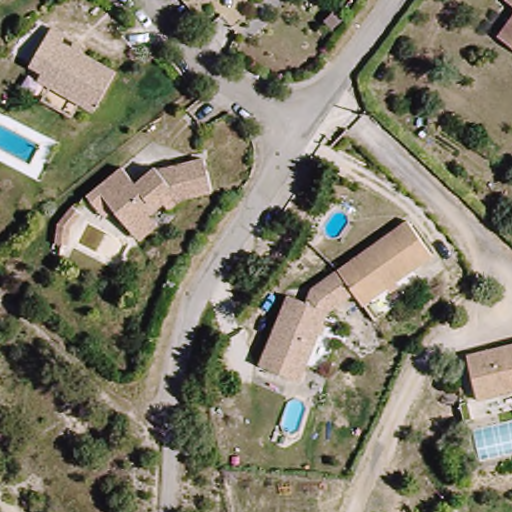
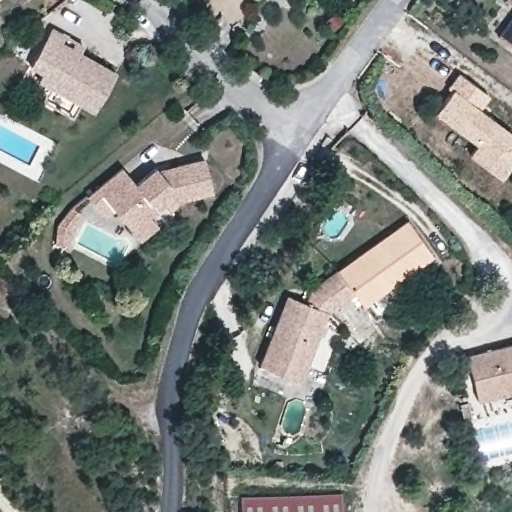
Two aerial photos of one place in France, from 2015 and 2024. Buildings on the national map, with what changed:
unchanged [(504,1),(505,0),(512,0),(512,8),(504,1)]
unchanged [(495,41),(512,13),(512,54),(495,41)]
unchanged [(45,104),(52,89),(39,82),(43,74),(31,66),(51,29),(63,36),(61,44),(115,75),(95,114),(80,105),(73,119),(45,104)]
new [(451,89),(448,86),(458,72),(489,95),(480,109),(512,134),(512,162),(499,179),(467,155),(475,144),(434,114),(451,89)]
unchanged [(147,243),(139,233),(123,214),(120,211),(110,219),(93,199),(103,190),(126,171),(138,186),(158,171),(209,159),(218,192),(189,199),(176,210),(171,205),(157,218),(165,227),(147,243)]
unchanged [(86,217),(75,230),(73,244),(61,243),(63,225),(77,209),(86,217)]
unchanged [(275,331),(288,297),(309,305),(318,285),(335,273),(412,219),(440,258),(371,309),(359,289),(351,295),(328,311),(309,361),(301,381),(261,367),(275,331)]
unchanged [(475,401),(462,354),(512,342),(512,392),(475,401)]
new [(239,499),(340,493),(341,512),(239,512),(239,499)]

